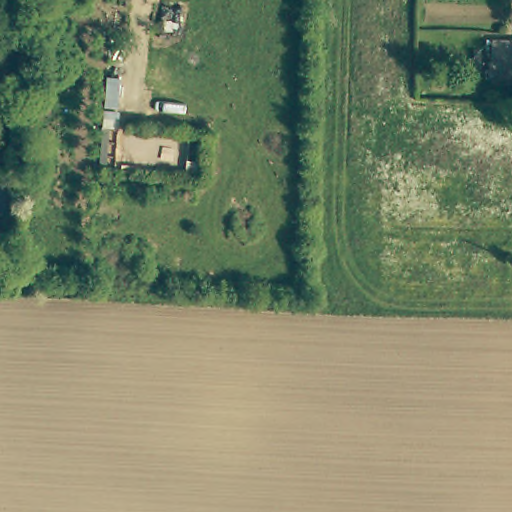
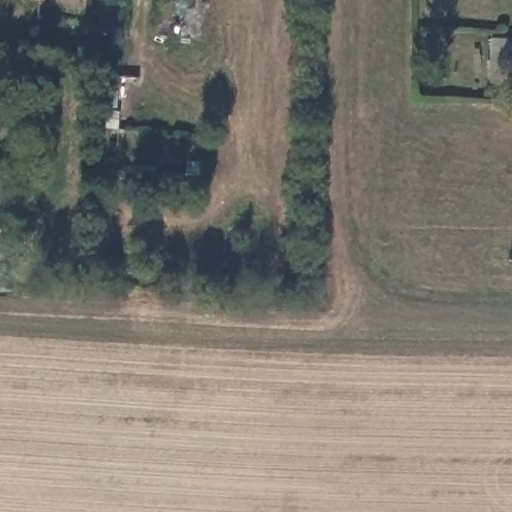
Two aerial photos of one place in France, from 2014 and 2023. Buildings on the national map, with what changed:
unchanged [(512,74),(492,73),(492,35),(512,35),(512,74)]

